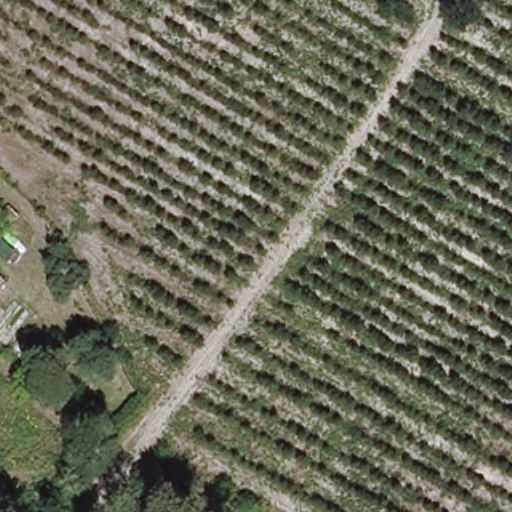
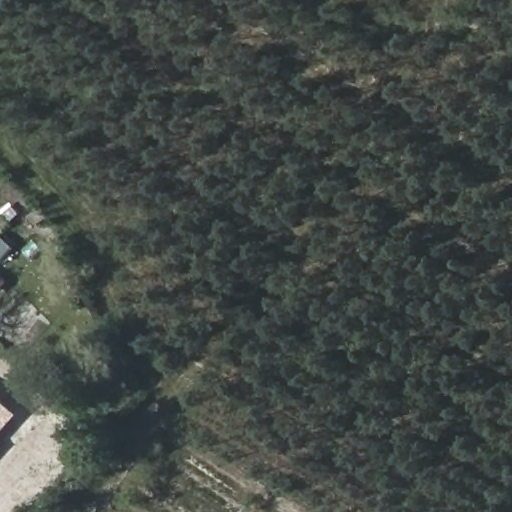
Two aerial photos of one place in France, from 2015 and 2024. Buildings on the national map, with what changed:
unchanged [(0,286),(0,272),(7,277),(0,286)]
new [(0,433),(0,400),(16,415),(0,433)]

